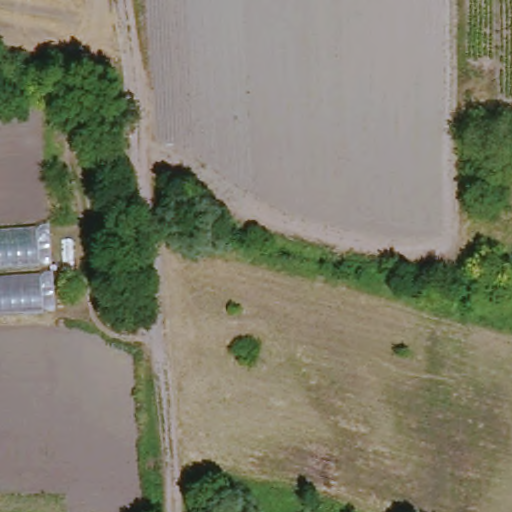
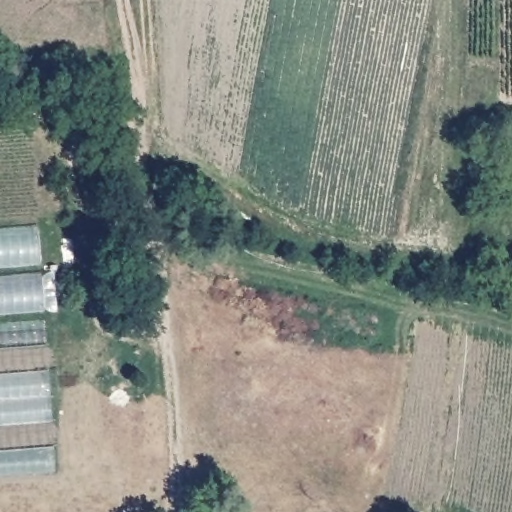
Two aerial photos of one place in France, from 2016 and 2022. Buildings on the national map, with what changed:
unchanged [(40,226),(42,265),(0,268),(0,229),(40,226)]
unchanged [(47,313),(0,317),(0,278),(45,274),(47,313)]
new [(44,322),(54,472),(0,476),(0,325),(44,322)]

